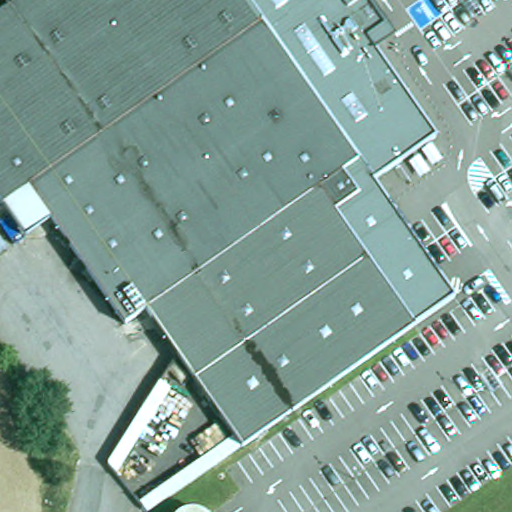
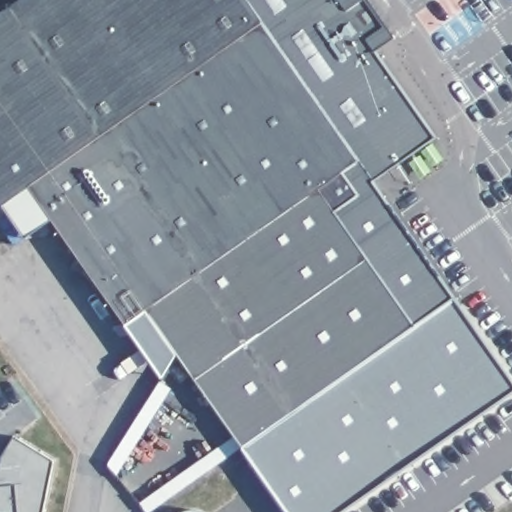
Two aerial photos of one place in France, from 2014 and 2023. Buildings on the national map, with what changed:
unchanged [(28,195),(4,212),(0,207),(0,15),(22,0),(288,0),(406,171),(337,219),(414,331),(151,512),(140,512),(104,467),(175,358),(143,316),(125,330),(50,225),(28,195)]
unchanged [(387,41),(375,52),(434,136),(400,162),(288,0),(359,0),(387,41)]
unchanged [(454,296),(411,327),(337,219),(378,190),(454,296)]
unchanged [(50,225),(26,242),(4,212),(28,195),(50,225)]
new [(411,327),(454,296),(512,377),(512,394),(344,512),(288,512),(244,448),(414,331),(411,327)]
new [(0,512),(0,485),(2,485),(8,460),(0,453),(11,436),(54,457),(42,512),(0,512)]

